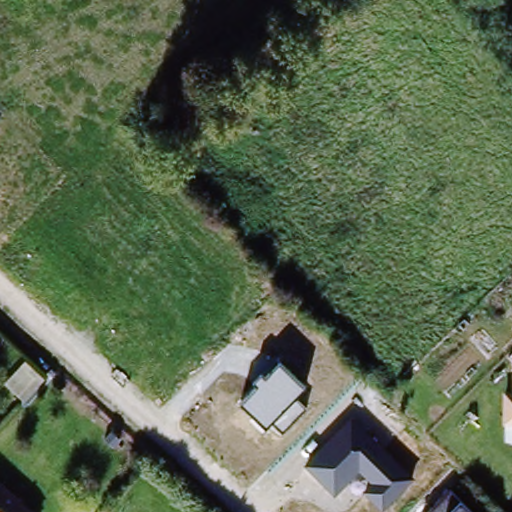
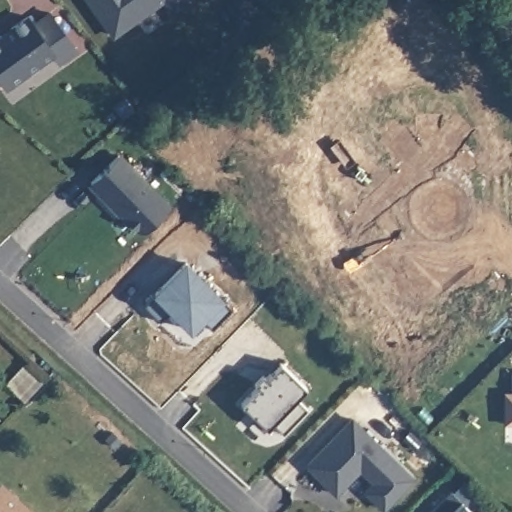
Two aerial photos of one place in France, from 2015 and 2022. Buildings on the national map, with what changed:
new [(1,36),(3,39),(12,32),(10,29),(27,17),(33,25),(49,14),(75,50),(58,62),(52,55),(5,88),(0,81),(0,36),(1,36)]
unchanged [(271,37),(287,56),(274,67),(258,50),(271,37)]
new [(118,157),(128,168),(130,167),(171,208),(145,232),(138,232),(121,216),(120,217),(99,197),(101,195),(91,184),(118,157)]
new [(186,264),(232,310),(211,330),(201,319),(190,330),(171,311),(159,322),(143,307),(186,264)]
unchanged [(259,384),(256,381),(262,375),(266,379),(280,364),(303,386),(295,396),(306,408),(283,431),(274,420),(266,428),(243,401),(259,384)]
unchanged [(505,392),(512,392),(512,423),(504,422),(505,392)]
unchanged [(352,417),(416,478),(382,512),(362,493),(372,482),(359,472),(335,497),(305,462),(352,417)]
unchanged [(0,512),(0,477),(5,482),(37,512),(36,512),(0,512)]
unchanged [(460,500),(473,512),(431,512),(451,492),(460,500)]

